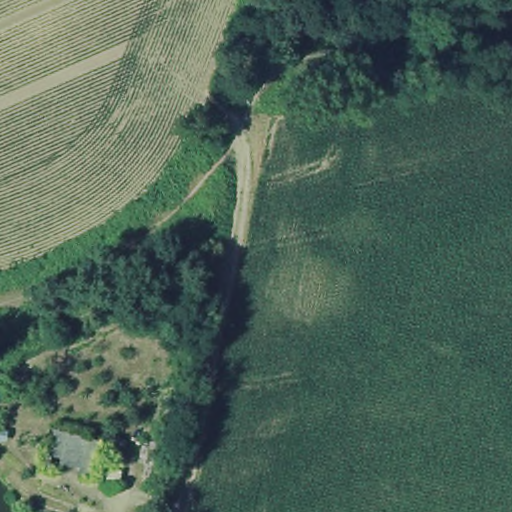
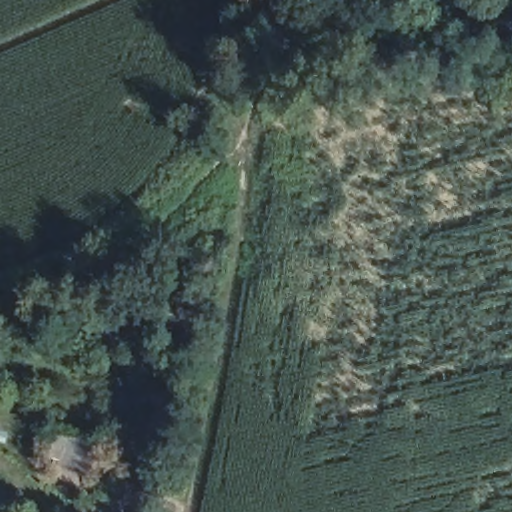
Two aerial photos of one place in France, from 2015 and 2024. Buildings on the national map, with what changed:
unchanged [(73,424),(102,431),(99,442),(95,463),(67,457),(71,436),(73,424)]

